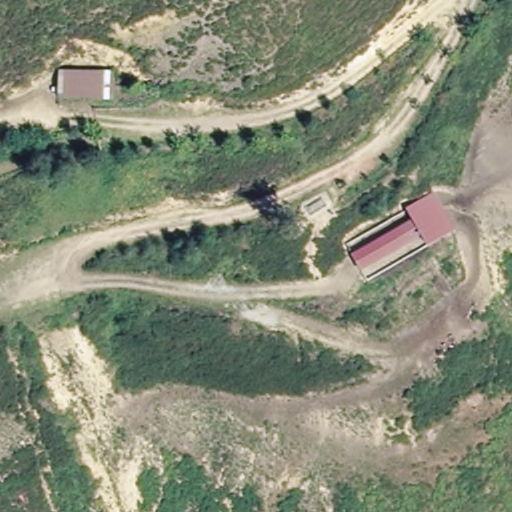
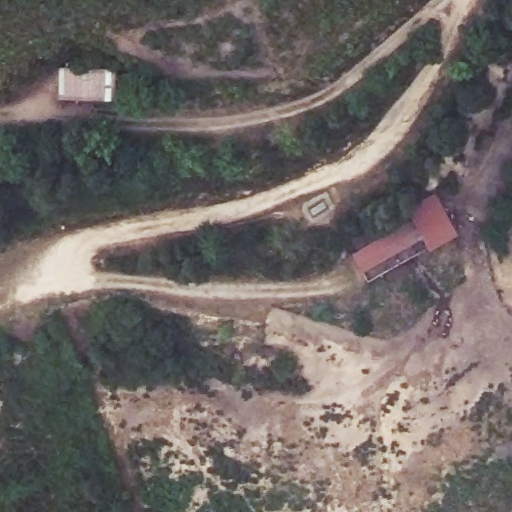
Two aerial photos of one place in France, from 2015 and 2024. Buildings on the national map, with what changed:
unchanged [(58,70),(115,70),(115,102),(58,100),(58,70)]
unchanged [(456,230),(427,246),(422,237),(364,270),(353,253),(412,219),(405,207),(434,192),(456,230)]

